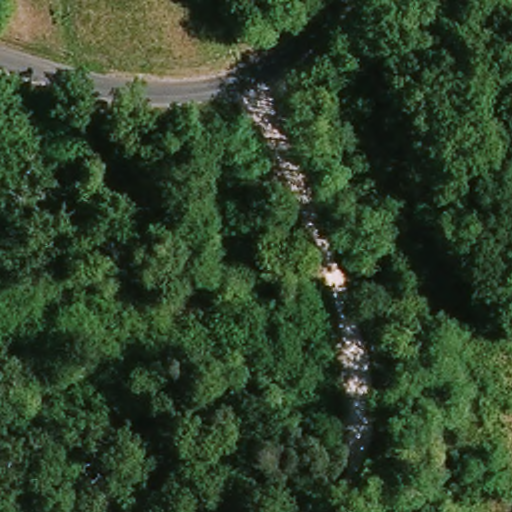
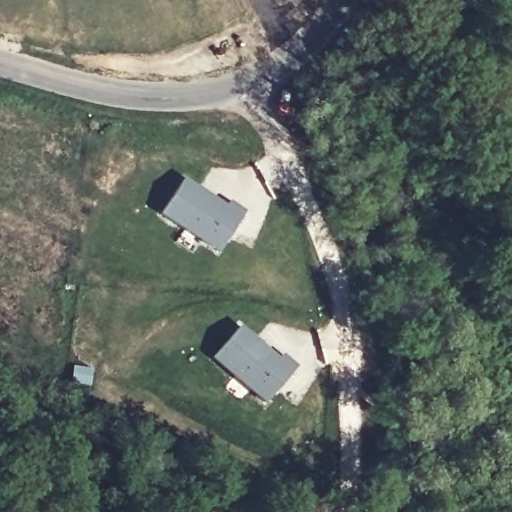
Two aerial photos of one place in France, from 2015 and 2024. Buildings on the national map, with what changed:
new [(158,215),(183,179),(226,206),(229,201),(245,211),(217,254),(158,215)]
new [(277,358),(281,353),(297,367),(262,405),(211,360),(240,326),(277,358)]

